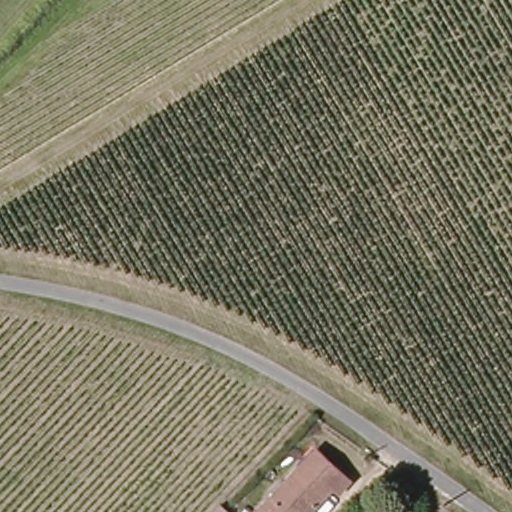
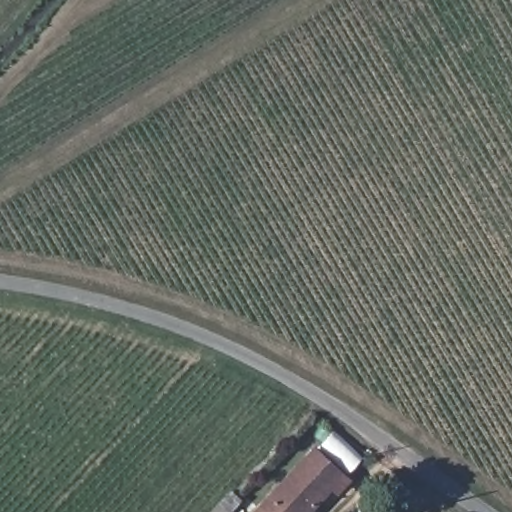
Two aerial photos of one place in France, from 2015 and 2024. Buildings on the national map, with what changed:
unchanged [(328,487),(304,512),(272,512),(261,501),(310,451),(342,482),(332,492),(328,487)]

